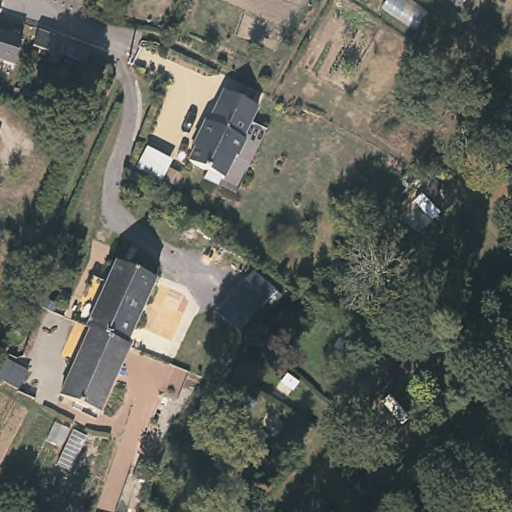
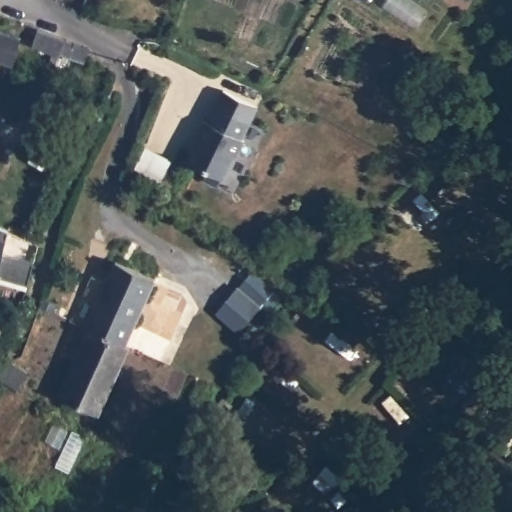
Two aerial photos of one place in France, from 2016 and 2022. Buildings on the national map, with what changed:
unchanged [(37,44),(42,28),(79,41),(95,47),(93,53),(90,61),(74,55),(70,66),(55,61),(57,51),(37,44)]
unchanged [(21,37),(13,64),(0,60),(0,30),(21,37)]
unchanged [(250,121),(215,104),(223,89),(258,107),(250,121)]
unchanged [(187,160),(199,136),(196,135),(204,118),(208,119),(215,104),(249,121),(241,137),(243,139),(236,155),(233,154),(222,177),(219,175),(216,182),(203,176),(207,169),(187,160)]
new [(28,287),(0,280),(0,226),(10,231),(6,241),(5,253),(37,260),(28,287)]
unchanged [(85,326),(115,259),(153,277),(124,343),(88,327),(85,326)]
unchanged [(253,270),(276,291),(239,332),(217,310),(253,270)]
unchanged [(127,345),(112,378),(98,410),(59,393),(88,327),(124,343),(127,345)]

